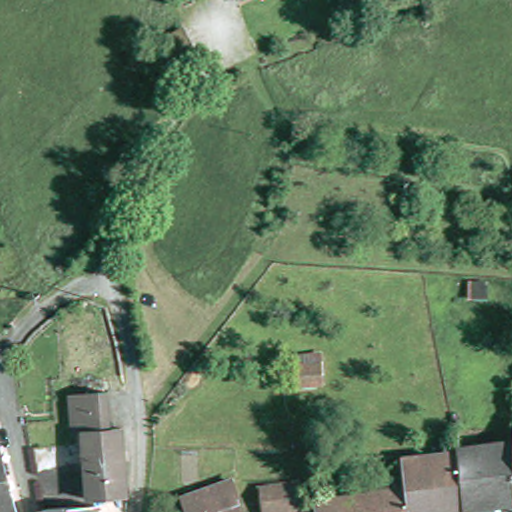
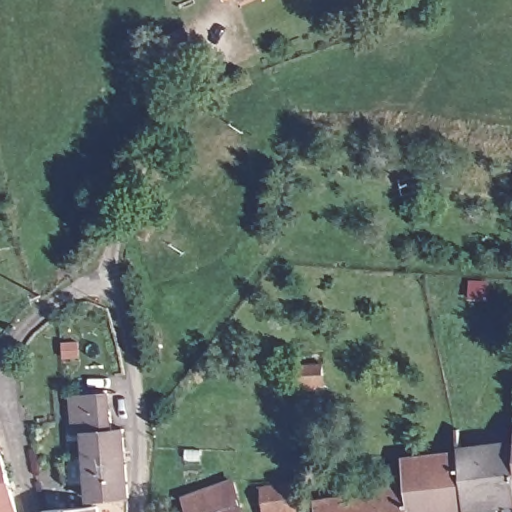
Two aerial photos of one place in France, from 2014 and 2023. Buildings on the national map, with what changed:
unchanged [(162,44),(184,31),(198,59),(175,70),(162,44)]
unchanged [(292,366),(312,365),(323,365),(324,386),(313,386),(292,387),(292,366)]
unchanged [(88,458),(86,434),(75,435),(72,397),(104,394),(110,394),(110,412),(112,431),(123,430),(129,498),(92,501),(89,471),(91,471),(90,458),(88,458)]
unchanged [(461,425),(465,424),(467,444),(512,438),(512,499),(473,504),(471,505),(465,447),(461,425)]
unchanged [(0,446),(18,512),(0,512),(0,446)]
unchanged [(465,512),(418,512),(413,483),(409,454),(465,447),(471,505),(473,504),(474,511),(465,512)]
unchanged [(235,483),(238,493),(227,497),(232,511),(228,512),(190,512),(185,500),(235,483)]
unchanged [(322,498),(335,495),(413,483),(418,512),(324,512),(322,498)]
unchanged [(262,489),(303,484),(306,504),(307,512),(264,512),(262,489)]
unchanged [(44,511),(92,507),(98,507),(98,512),(44,512),(44,511)]
unchanged [(232,511),(233,512),(228,512),(232,511)]

